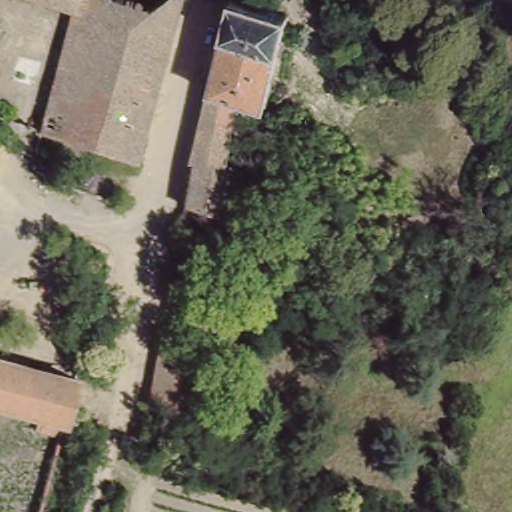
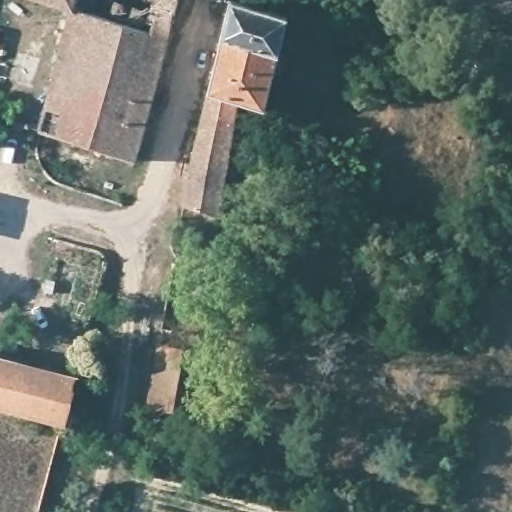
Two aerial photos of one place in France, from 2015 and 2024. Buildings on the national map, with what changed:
unchanged [(136,161),(38,130),(73,12),(34,0),(179,0),(136,161)]
unchanged [(194,204),(210,184),(184,174),(230,3),(289,18),(281,43),(278,54),(276,61),(274,67),(272,75),(269,89),(261,114),(236,107),(218,186),(238,194),(242,195),(225,213),(194,204)]
unchanged [(180,285),(186,261),(211,269),(203,292),(180,285)]
unchanged [(190,349),(178,400),(154,395),(166,342),(190,349)]
unchanged [(3,412),(0,412),(0,362),(74,382),(63,428),(3,412)]

